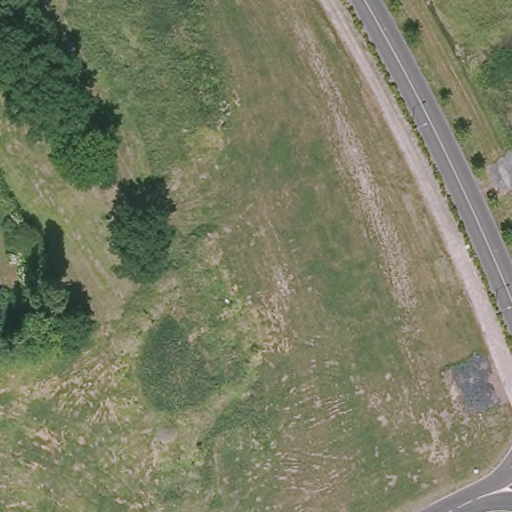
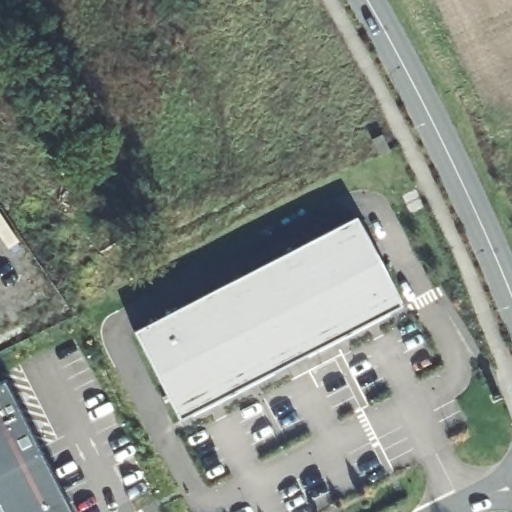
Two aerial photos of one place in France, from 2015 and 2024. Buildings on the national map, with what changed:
new [(355,216),(398,303),(177,417),(132,330),(355,216)]
new [(72,512),(0,512),(0,386),(6,382),(72,512)]

